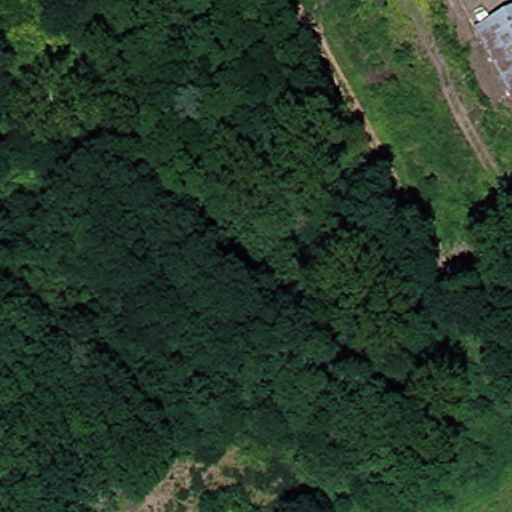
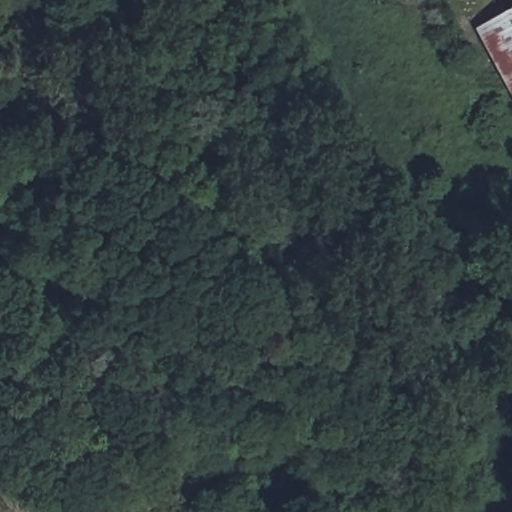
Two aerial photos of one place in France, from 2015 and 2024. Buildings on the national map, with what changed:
unchanged [(461,8),(479,0),(512,0),(512,101),(461,8)]

